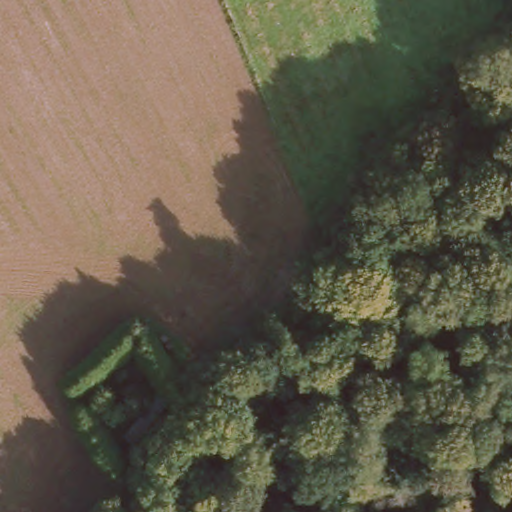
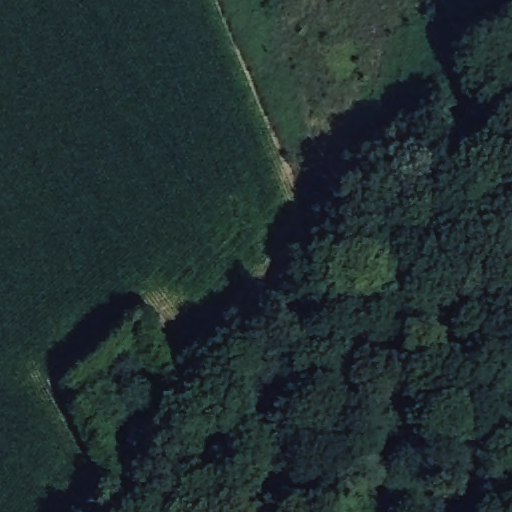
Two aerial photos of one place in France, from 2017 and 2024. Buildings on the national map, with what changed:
unchanged [(167,412),(138,456),(122,443),(151,401),(167,412)]

